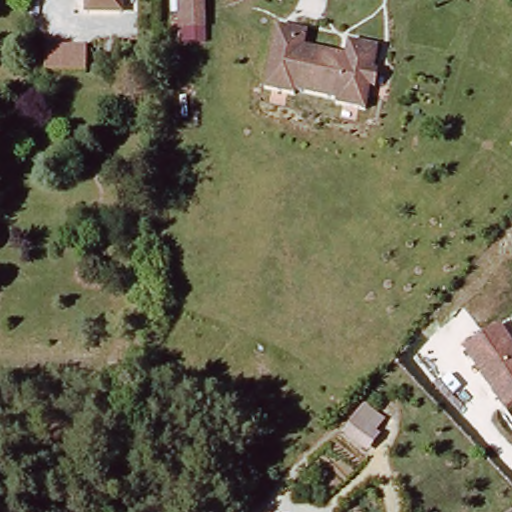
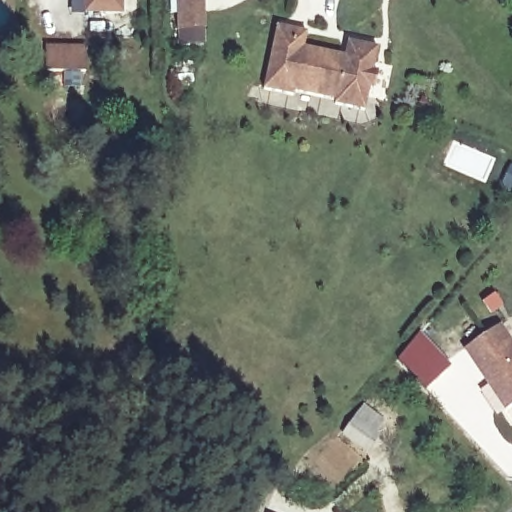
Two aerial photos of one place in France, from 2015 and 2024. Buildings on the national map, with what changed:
unchanged [(89,12),(89,0),(120,0),(120,13),(89,12)]
unchanged [(177,35),(176,0),(207,0),(207,35),(177,35)]
unchanged [(374,63),(343,114),(321,103),(321,99),(289,79),(283,81),(261,67),(291,15),(314,28),(306,41),(344,63),(352,50),(374,63)]
unchanged [(53,71),(53,45),(89,45),(89,71),(53,71)]
unchanged [(512,347),(512,408),(507,413),(466,353),(499,329),(512,347)]
new [(453,366),(428,391),(397,360),(422,335),(453,366)]
unchanged [(339,437),(350,421),(373,436),(363,453),(339,437)]

